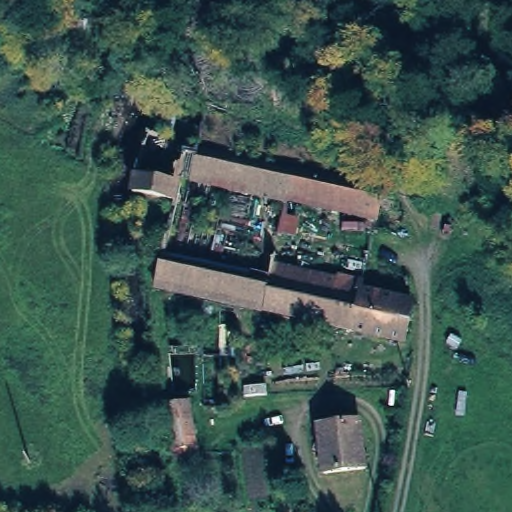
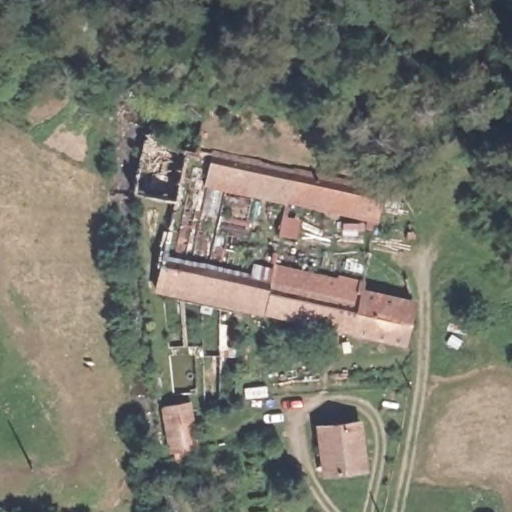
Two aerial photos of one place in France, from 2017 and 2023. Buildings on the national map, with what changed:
unchanged [(193,184),(190,202),(136,190),(156,121),(391,169),(379,226),(193,184)]
unchanged [(414,343),(153,295),(161,247),(256,268),(259,256),(420,291),(414,343)]
unchanged [(184,392),(188,446),(166,450),(161,395),(184,392)]
unchanged [(351,421),(358,466),(314,472),(309,426),(351,421)]

